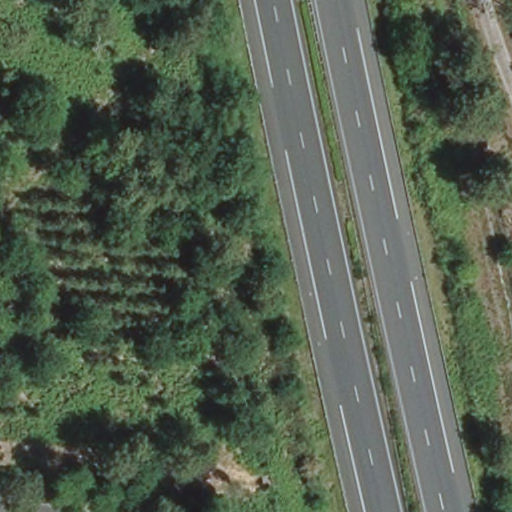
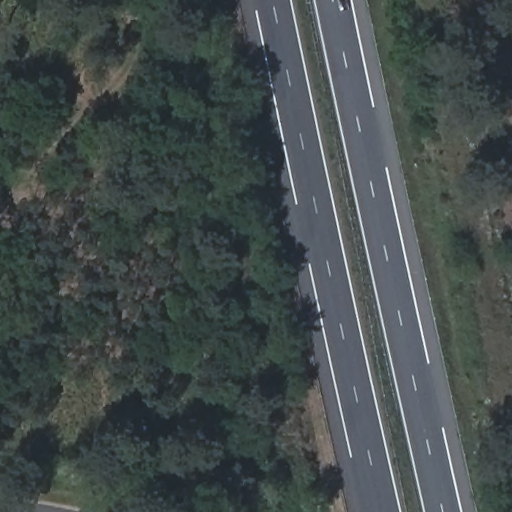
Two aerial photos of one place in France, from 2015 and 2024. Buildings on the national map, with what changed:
[]

